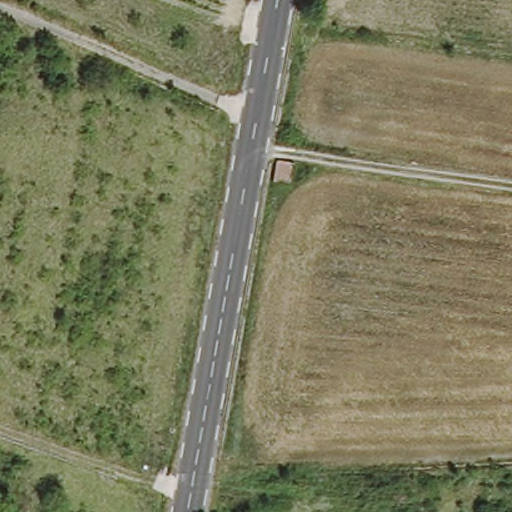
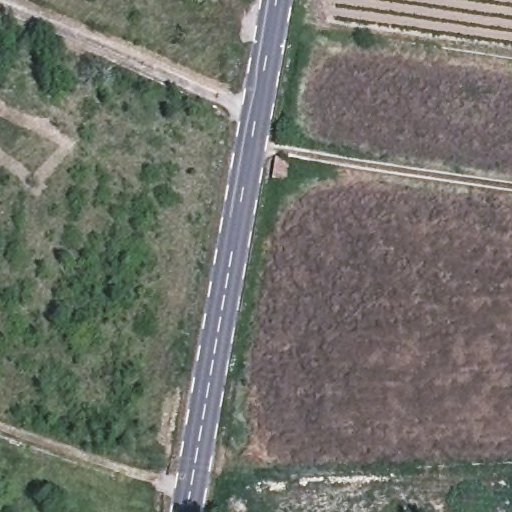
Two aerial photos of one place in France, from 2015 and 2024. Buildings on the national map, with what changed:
unchanged [(264,179),(267,161),(292,165),(289,182),(264,179)]

